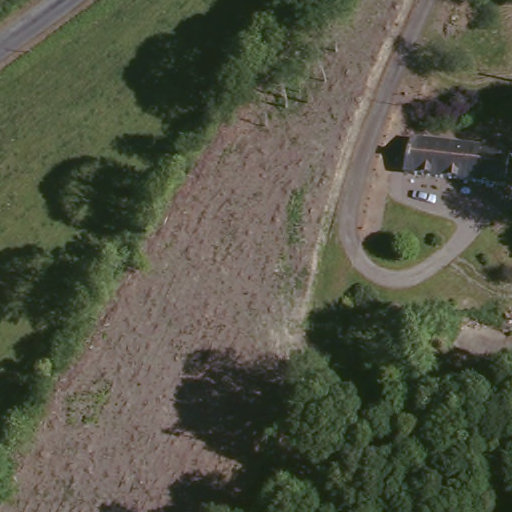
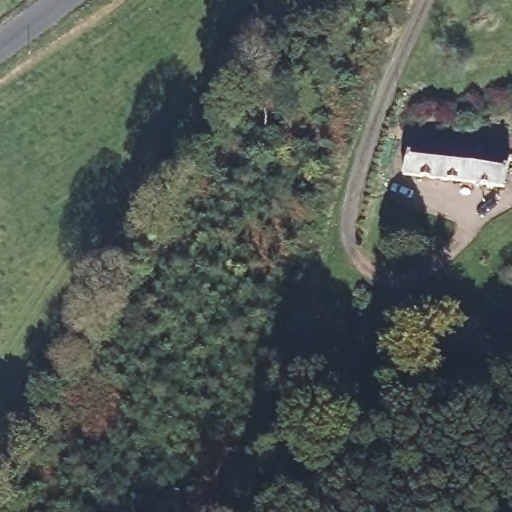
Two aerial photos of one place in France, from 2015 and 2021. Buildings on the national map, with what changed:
unchanged [(512,173),(511,185),(408,171),(412,137),(512,150),(512,173)]

